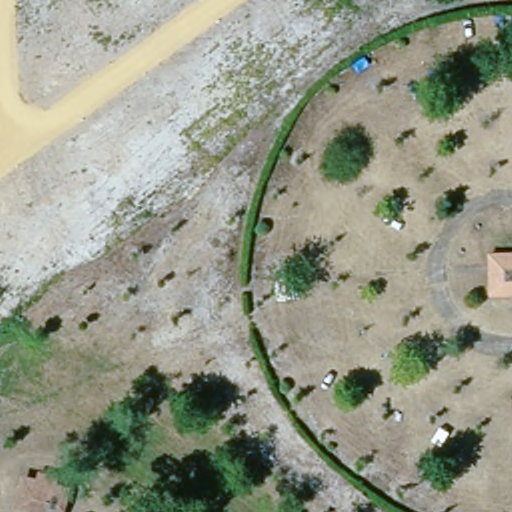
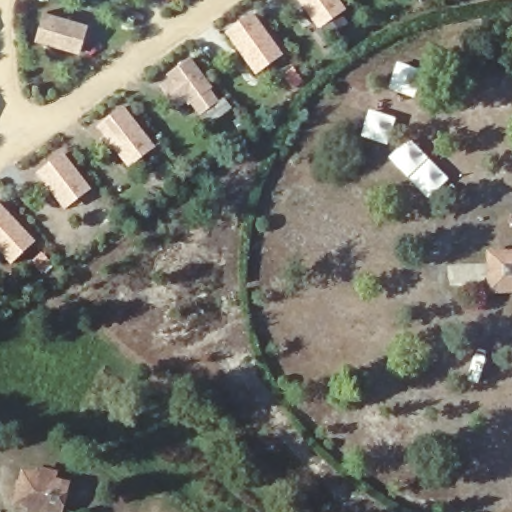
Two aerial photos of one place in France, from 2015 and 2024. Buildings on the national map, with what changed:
new [(299,0),(340,0),(347,9),(319,29),(299,0)]
new [(36,42),(45,12),(90,26),(80,55),(36,42)]
new [(226,32),(253,12),(284,55),(256,74),(226,32)]
new [(189,100),(178,109),(160,85),(169,77),(167,75),(191,57),(214,86),(212,89),(221,101),(225,99),(233,109),(210,126),(189,100)]
new [(124,106),(156,147),(130,166),(97,126),(124,106)]
new [(38,172),(64,151),(91,189),(65,209),(38,172)]
new [(13,263),(0,251),(0,203),(36,241),(13,263)]
unchanged [(490,293),(490,254),(512,253),(512,293),(490,293)]
unchanged [(20,512),(18,511),(25,481),(36,483),(39,473),(56,477),(53,487),(68,490),(64,512),(20,512)]

